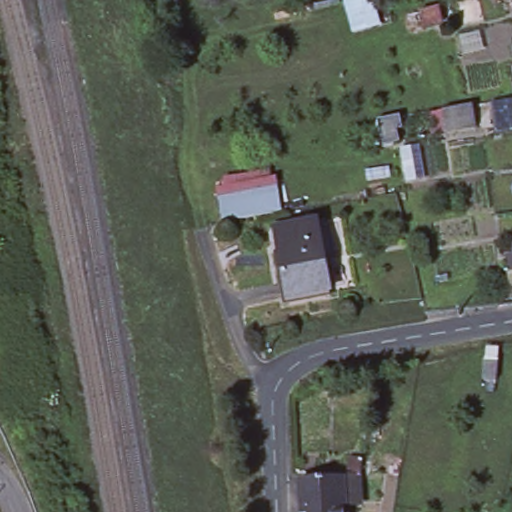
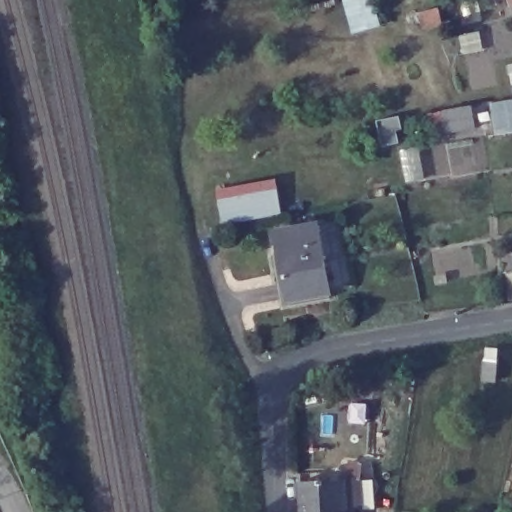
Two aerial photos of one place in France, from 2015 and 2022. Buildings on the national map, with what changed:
unchanged [(461,0),(469,0),(470,7),(460,9),(458,0),(461,0)]
unchanged [(505,4),(505,0),(512,0),(512,20),(509,4),(505,4)]
unchanged [(439,6),(442,21),(422,25),(420,10),(439,6)]
unchanged [(477,130),(427,138),(423,112),(471,104),(477,130)]
unchanged [(382,145),(379,131),(377,120),(401,116),(403,127),(397,128),(399,141),(382,145)]
unchanged [(281,214),(222,226),(214,191),(223,189),(221,179),(273,168),(281,214)]
unchanged [(314,223),(326,291),(284,298),(271,231),(314,223)]
unchanged [(508,256),(512,256),(512,271),(510,271),(508,256)]
unchanged [(352,469),(353,465),(357,466),(356,483),(341,483),(342,469),(352,469)]
unchanged [(339,483),(340,512),(296,512),(295,486),(339,483)]

